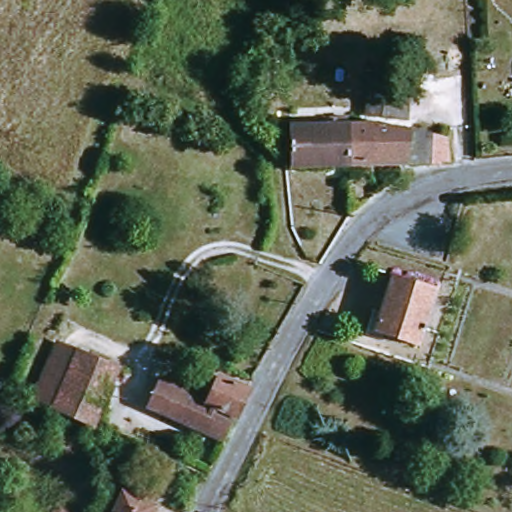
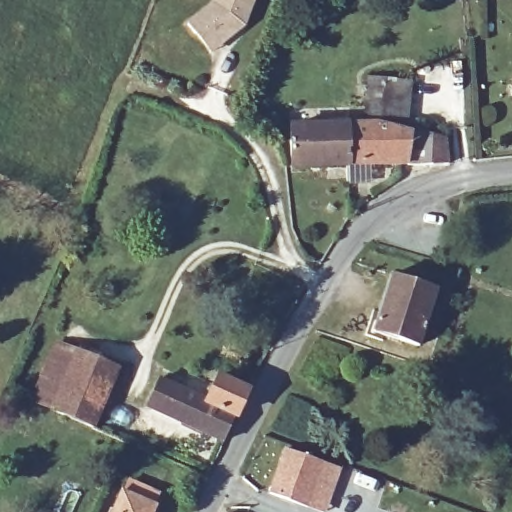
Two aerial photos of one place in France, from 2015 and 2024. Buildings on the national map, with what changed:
new [(246,28),(212,55),(186,24),(212,4),(214,0),(255,0),(246,28)]
unchanged [(405,120),(362,115),(367,78),(409,83),(405,120)]
unchanged [(348,119),(348,121),(348,125),(348,165),(290,166),(288,126),(340,125),(340,118),(348,119)]
unchanged [(407,164),(408,163),(348,165),(348,125),(381,124),(402,132),(404,126),(447,139),(449,164),(445,164),(407,164)]
demolished [(273,223),(258,250),(234,237),(248,210),(273,223)]
unchanged [(437,288),(420,345),(385,333),(382,340),(366,334),(374,309),(380,311),(391,274),(437,288)]
unchanged [(52,412),(33,403),(60,345),(79,353),(52,412)]
unchanged [(120,372),(93,430),(52,412),(79,353),(120,372)]
unchanged [(246,388),(223,441),(146,408),(158,381),(175,388),(177,381),(185,384),(182,390),(209,402),(220,376),(246,388)]
new [(283,450),(342,466),(331,512),(270,495),(283,450)]
unchanged [(154,506),(151,512),(114,512),(122,493),(154,506)]

